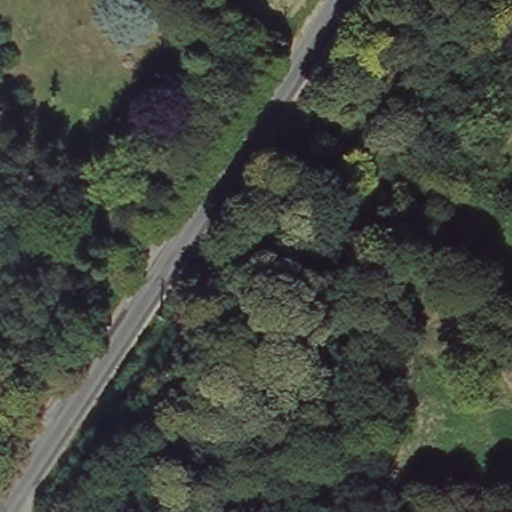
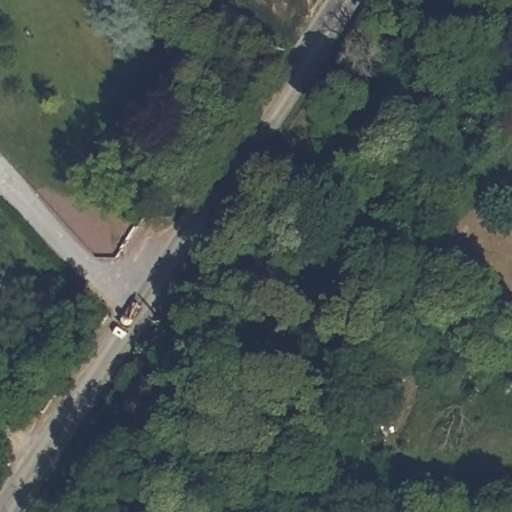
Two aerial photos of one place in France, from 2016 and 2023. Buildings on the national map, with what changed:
unchanged [(11,320),(24,334),(1,355),(0,353),(0,330),(11,320)]

